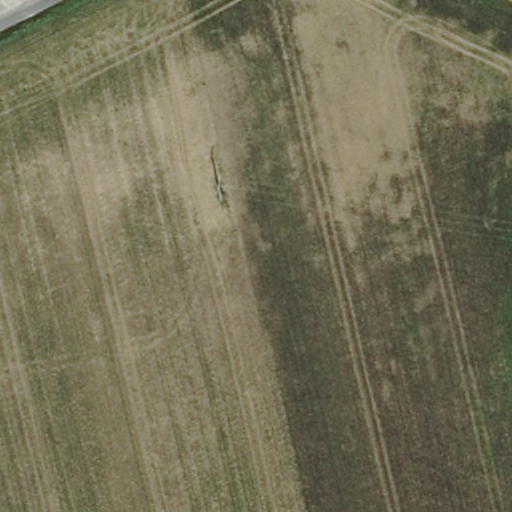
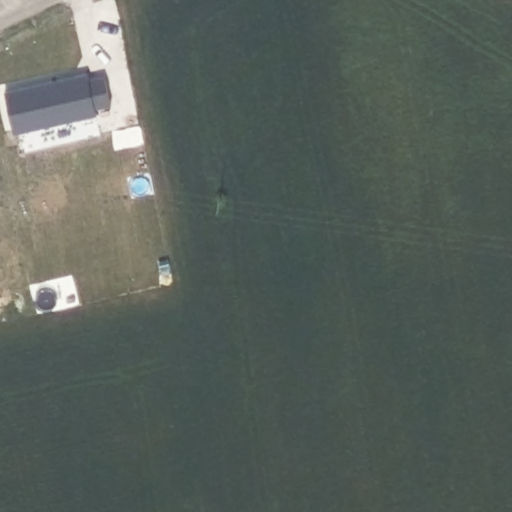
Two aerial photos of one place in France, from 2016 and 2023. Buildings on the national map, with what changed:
new [(91,72),(92,78),(107,75),(113,101),(97,105),(99,111),(15,129),(7,89),(91,72)]

